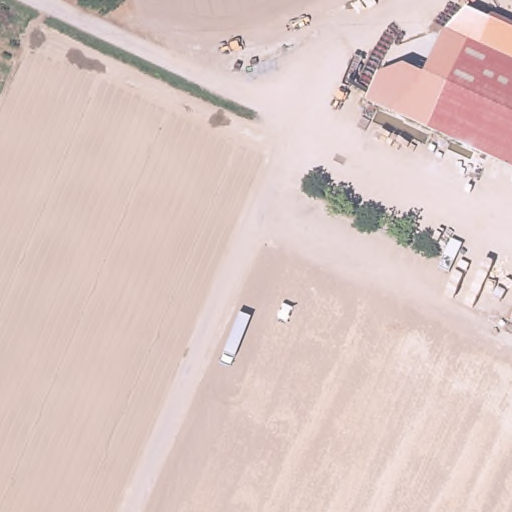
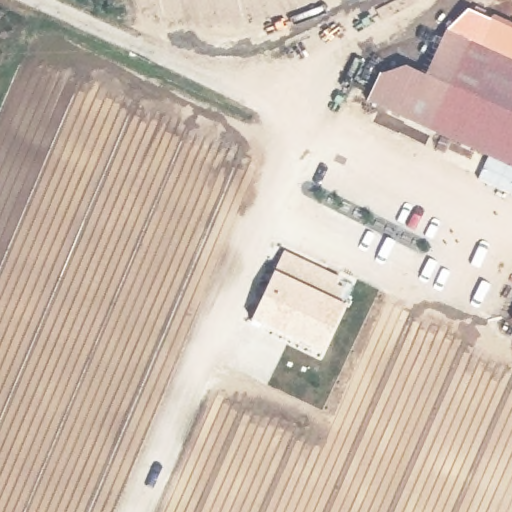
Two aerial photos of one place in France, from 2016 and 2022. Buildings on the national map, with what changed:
unchanged [(480,29),(488,19),(489,18),(512,29),(512,65),(467,43),(480,29)]
unchanged [(425,129),(403,118),(387,110),(424,75),(444,32),(467,43),(425,129)]
unchanged [(467,43),(512,65),(512,170),(425,129),(467,43)]
new [(364,100),(377,74),(404,66),(424,75),(387,110),(364,100)]
new [(272,271),(281,250),(337,275),(334,284),(346,289),(341,304),(320,353),(250,320),(272,271)]

